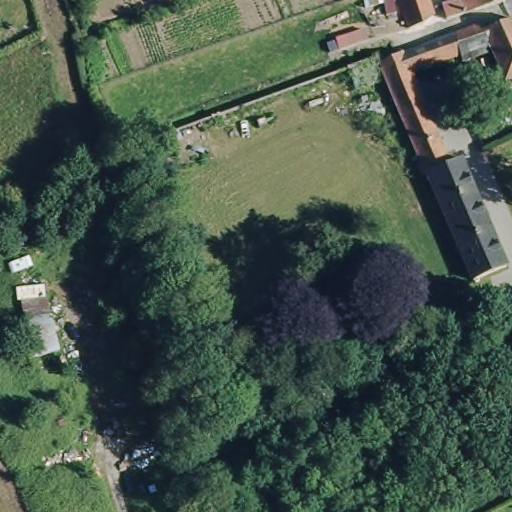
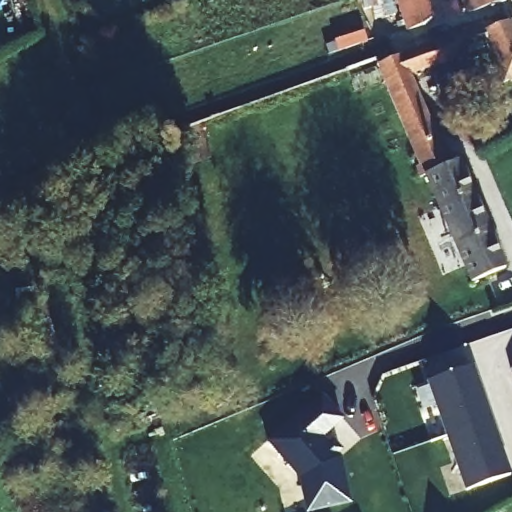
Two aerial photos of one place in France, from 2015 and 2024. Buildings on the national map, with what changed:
unchanged [(430,18),(420,27),(405,31),(397,0),(425,0),(430,18)]
unchanged [(443,22),(438,7),(454,2),(452,0),(501,0),(503,2),(443,22)]
unchanged [(376,64),(480,25),(482,31),(511,20),(512,23),(512,78),(501,84),(487,53),(459,64),(456,57),(407,76),(409,81),(385,90),(382,82),(352,94),(344,70),(374,58),(376,64)]
unchanged [(363,32),(365,42),(334,51),(333,42),(363,32)]
unchanged [(409,81),(446,164),(457,160),(502,268),(469,282),(424,176),(418,178),(413,167),(417,166),(385,90),(409,81)]
demolished [(512,306),(512,339),(497,344),(488,315),(491,314),(512,306)]
demolished [(472,352),(437,365),(432,350),(441,347),(433,330),(460,321),(472,352)]
new [(427,381),(419,362),(464,346),(472,365),(511,474),(464,490),(427,381)]
new [(315,512),(307,512),(299,478),(268,442),(321,395),(344,418),(324,438),(330,445),(333,441),(342,450),(339,455),(341,457),(351,503),(315,512)]

